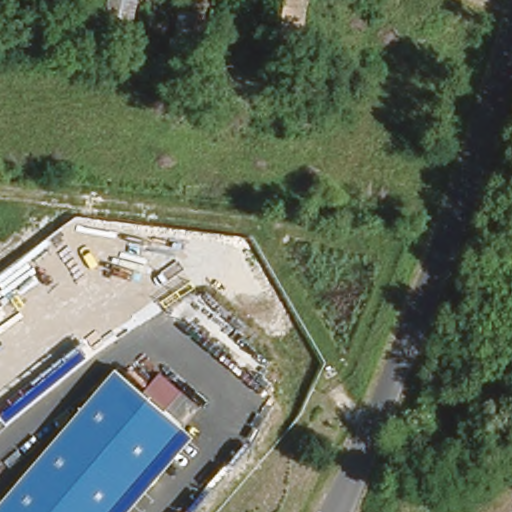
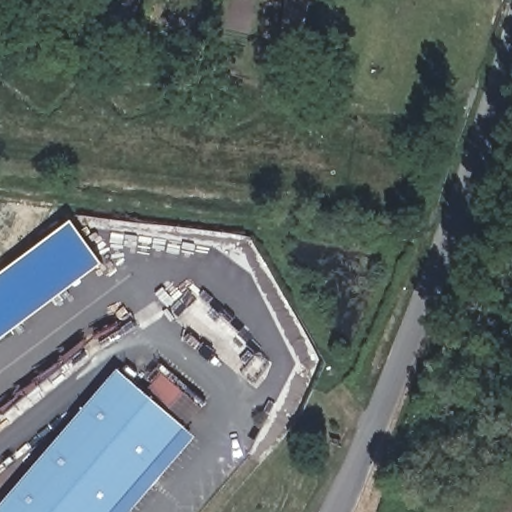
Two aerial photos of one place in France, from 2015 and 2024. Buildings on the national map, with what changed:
unchanged [(312,34),(287,31),(293,0),(320,0),(312,34)]
new [(103,263),(0,339),(0,271),(70,219),(103,263)]
unchanged [(207,424),(132,512),(0,512),(0,506),(126,353),(207,424)]

